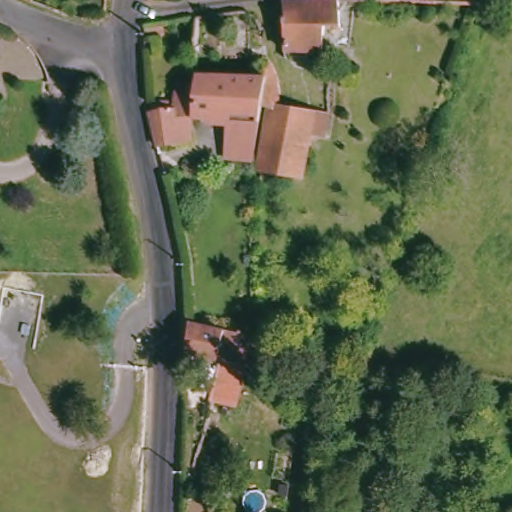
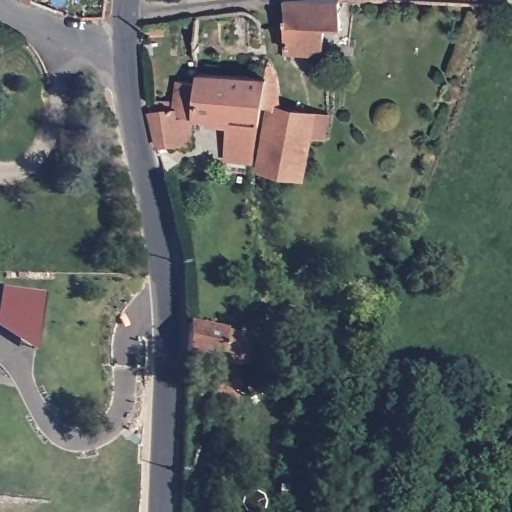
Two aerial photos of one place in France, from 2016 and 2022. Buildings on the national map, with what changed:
unchanged [(30,0),(35,0),(34,1),(30,0)]
unchanged [(332,26),(329,50),(290,50),(289,24),(289,18),(291,18),(291,0),(300,0),(346,0),(348,25),(332,26)]
unchanged [(336,139),(321,136),(314,177),(269,169),(279,109),(271,108),(276,76),(279,65),(283,70),(287,80),(289,91),(288,105),(341,115),(336,139)]
unchanged [(169,145),(158,110),(186,110),(188,88),(206,89),(209,73),(276,76),(271,108),(262,173),(249,172),(252,134),(239,132),(241,117),(190,113),(191,143),(169,145)]
new [(3,286),(44,293),(35,351),(0,327),(0,302),(3,286)]
unchanged [(206,396),(209,379),(214,356),(183,349),(186,319),(220,328),(221,325),(248,332),(234,385),(231,402),(206,396)]

